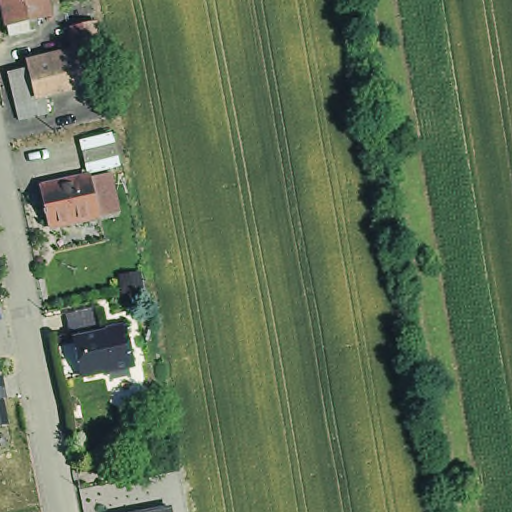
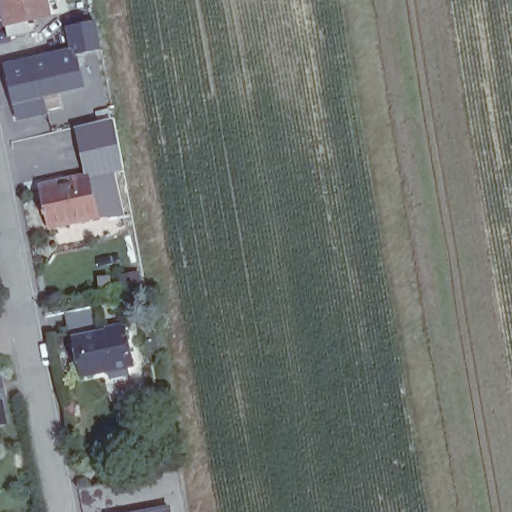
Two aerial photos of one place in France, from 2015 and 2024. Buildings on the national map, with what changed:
unchanged [(0,0),(38,0),(39,4),(17,8),(20,21),(0,25),(0,0)]
unchanged [(70,26),(71,26),(96,22),(101,49),(76,54),(70,26)]
unchanged [(15,101),(9,74),(78,57),(84,85),(43,95),(47,113),(19,120),(15,101)]
unchanged [(81,141),(110,134),(117,166),(89,172),(81,141)]
unchanged [(47,217),(45,217),(44,213),(47,212),(41,188),(52,186),(52,183),(76,177),(77,180),(90,177),(110,172),(119,212),(99,217),(50,227),(47,217)]
unchanged [(110,373),(109,366),(88,370),(82,371),(75,332),(80,331),(125,322),(133,361),(127,362),(129,369),(110,373)]
unchanged [(0,376),(2,376),(7,398),(3,399),(9,424),(0,426),(0,376)]
unchanged [(171,503),(173,512),(123,512),(171,503)]

